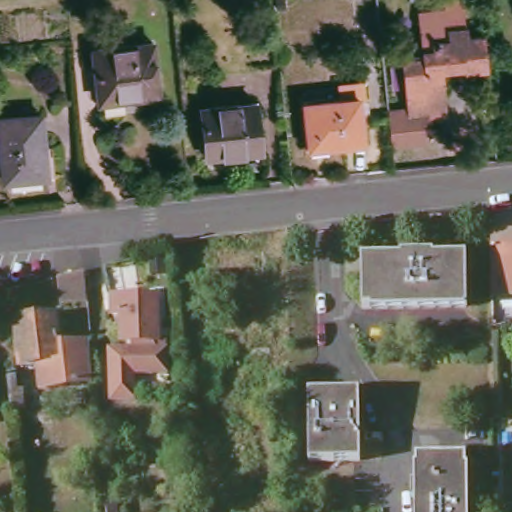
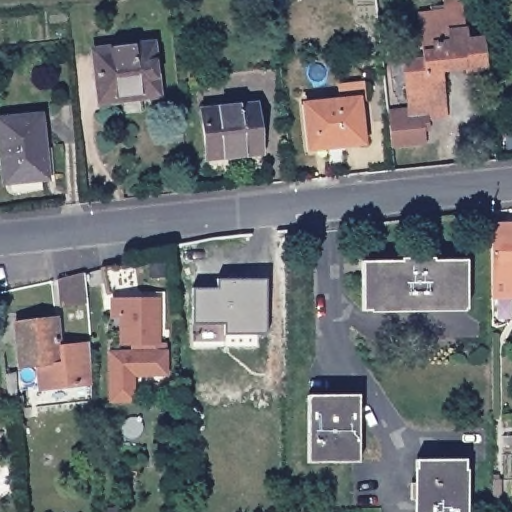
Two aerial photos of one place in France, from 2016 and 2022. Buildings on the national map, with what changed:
unchanged [(468,67),(472,67),(472,65),(456,66),(455,61),(443,62),(448,116),(416,119),(410,64),(414,64),(413,46),(426,44),(422,13),(435,12),(434,6),(448,5),(447,0),(465,0),(469,39),(487,37),(490,71),(469,73),(468,67)]
unchanged [(158,96),(134,99),(133,92),(98,96),(96,79),(92,79),(89,51),(151,44),(158,96)]
unchanged [(364,144),(310,150),(306,108),(359,102),(364,144)]
unchanged [(261,155),(209,161),(204,111),(256,106),(261,155)]
unchanged [(408,112),(409,126),(426,124),(428,143),(397,146),(393,114),(408,112)]
unchanged [(45,177),(3,182),(0,148),(0,120),(39,115),(45,177)]
unchanged [(489,275),(489,221),(512,221),(512,293),(489,293),(489,275)]
unchanged [(436,261),(466,260),(466,308),(367,311),(364,262),(402,261),(403,257),(436,256),(436,261)]
unchanged [(148,290),(116,293),(110,269),(141,263),(148,290)]
unchanged [(158,267),(171,267),(171,278),(158,278),(158,267)]
unchanged [(84,302),(64,307),(60,278),(81,272),(84,302)]
new [(268,337),(226,337),(226,326),(194,326),(194,290),(219,290),(219,281),(268,281),(268,337)]
unchanged [(173,343),(173,352),(174,352),(174,378),(141,378),(141,403),(118,403),(118,353),(140,353),(140,346),(129,346),(129,317),(121,317),(121,301),(166,301),(173,301),(173,323),(166,323),(166,343),(173,343)]
unchanged [(63,342),(91,338),(93,379),(43,385),(39,359),(23,361),(18,318),(58,313),(63,342)]
unchanged [(23,392),(32,392),(33,403),(14,405),(10,368),(20,368),(23,392)]
unchanged [(359,461),(308,461),(306,396),(357,395),(359,461)]
unchanged [(462,512),(413,512),(412,463),(459,461),(462,512)]

